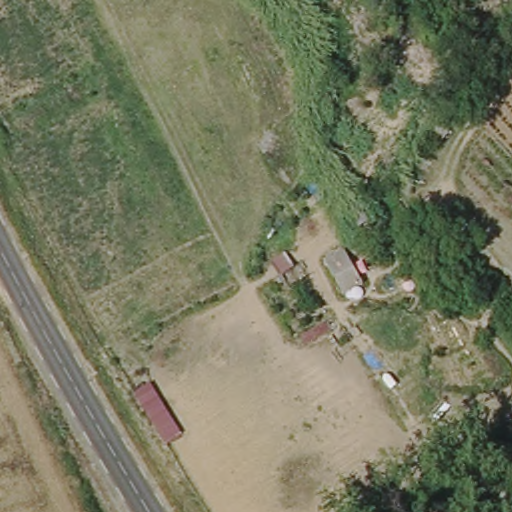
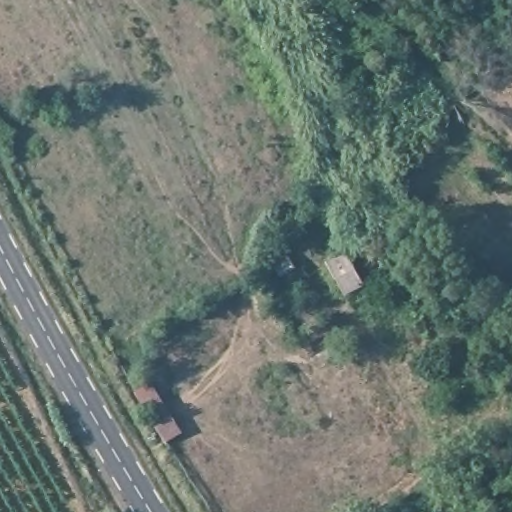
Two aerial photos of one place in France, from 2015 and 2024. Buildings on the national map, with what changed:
unchanged [(427,129),(445,111),(455,122),(437,137),(427,129)]
unchanged [(371,278),(355,289),(352,291),(330,261),(350,249),(371,278)]
unchanged [(183,432),(166,442),(135,393),(151,383),(183,432)]

